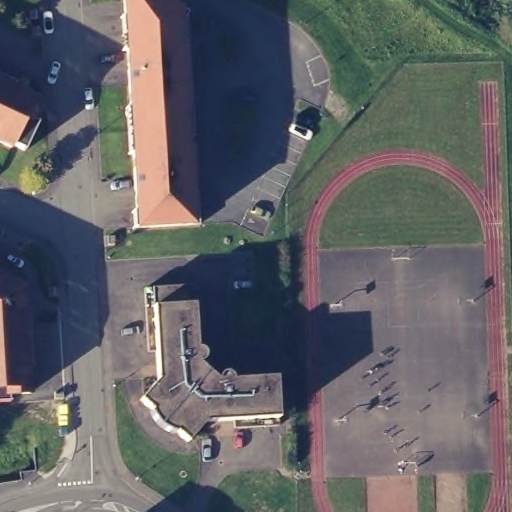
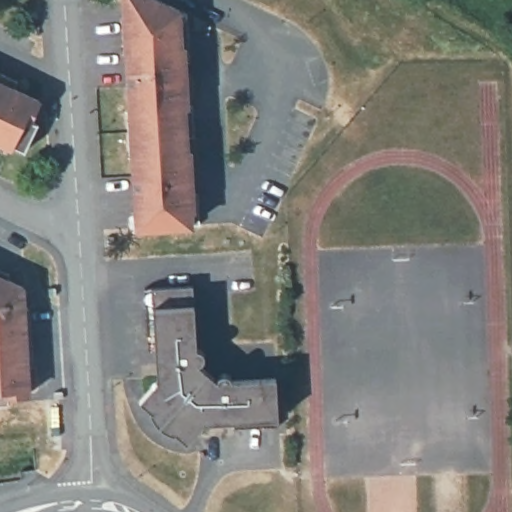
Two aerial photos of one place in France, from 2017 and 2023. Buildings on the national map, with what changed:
unchanged [(132,230),(119,0),(167,0),(182,7),(194,227),(132,230)]
unchanged [(12,89),(39,101),(30,120),(35,124),(36,122),(37,123),(24,151),(22,151),(23,150),(12,145),(10,148),(0,143),(0,74),(15,81),(12,89)]
unchanged [(6,279),(22,286),(23,308),(29,308),(32,365),(26,366),(28,392),(7,394),(7,400),(9,400),(9,401),(0,402),(0,270),(8,274),(6,279)]
unchanged [(196,284),(200,346),(205,348),(207,350),(208,350),(209,353),(209,355),(207,357),(206,359),(201,361),(220,378),(220,376),(222,373),(224,371),(227,370),(229,370),(232,371),(233,372),(236,376),(278,376),(282,425),(237,427),(237,420),(207,422),(190,441),(178,431),(177,432),(164,427),(162,425),(152,410),(154,409),(142,400),(160,379),(158,350),(151,350),(147,287),(196,284)]

